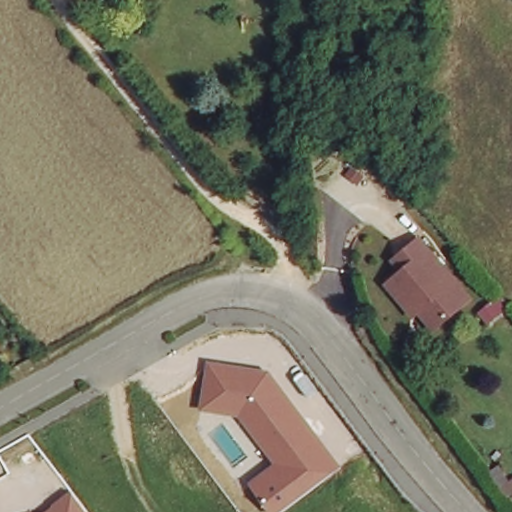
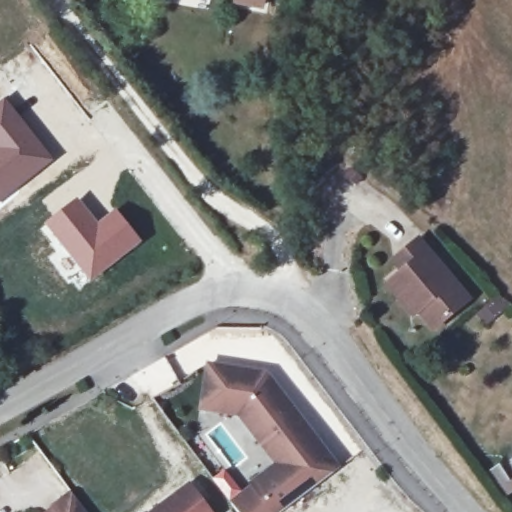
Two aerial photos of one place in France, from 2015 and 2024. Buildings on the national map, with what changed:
new [(5,95),(55,160),(0,203),(0,99),(5,95)]
new [(77,196),(98,221),(115,207),(143,242),(90,283),(43,224),(77,196)]
unchanged [(429,331),(385,280),(399,270),(390,257),(417,233),(470,298),(429,331)]
unchanged [(273,464),(238,416),(199,410),(205,361),(267,371),(339,466),(278,512),(271,512),(248,482),(273,464)]
new [(189,479),(213,512),(147,512),(189,479)]
unchanged [(70,492),(85,512),(43,512),(70,492)]

